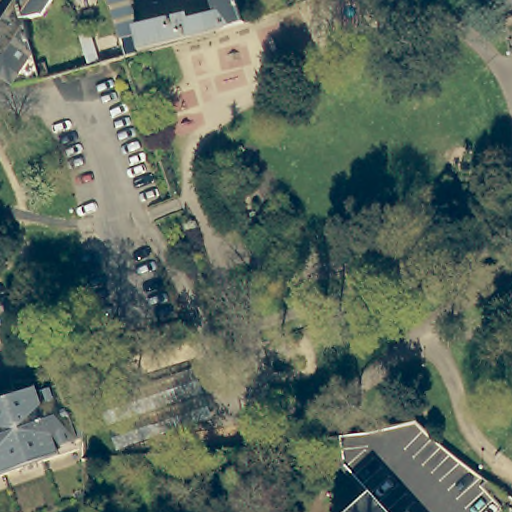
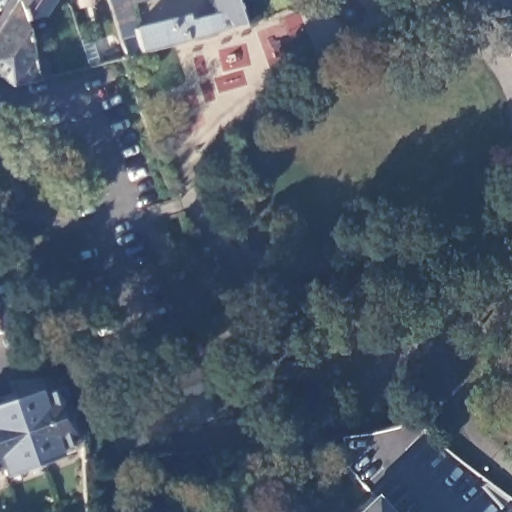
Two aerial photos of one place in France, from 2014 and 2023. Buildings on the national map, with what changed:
unchanged [(20,0),(53,0),(44,16),(25,21),(20,2),(20,0)]
unchanged [(131,6),(136,24),(135,32),(135,38),(141,55),(128,59),(110,0),(152,0),(131,6)]
unchanged [(135,38),(135,32),(189,17),(191,23),(217,15),(212,0),(236,0),(244,25),(141,55),(135,38)]
unchanged [(512,22),(507,24),(499,5),(510,0),(512,0),(512,22)]
unchanged [(52,79),(42,81),(15,87),(0,78),(0,31),(20,2),(25,21),(37,66),(47,64),(52,79)]
unchanged [(0,482),(0,408),(35,395),(36,402),(60,393),(65,412),(75,410),(77,454),(0,482)]
unchanged [(388,512),(355,512),(373,497),(388,512)]

